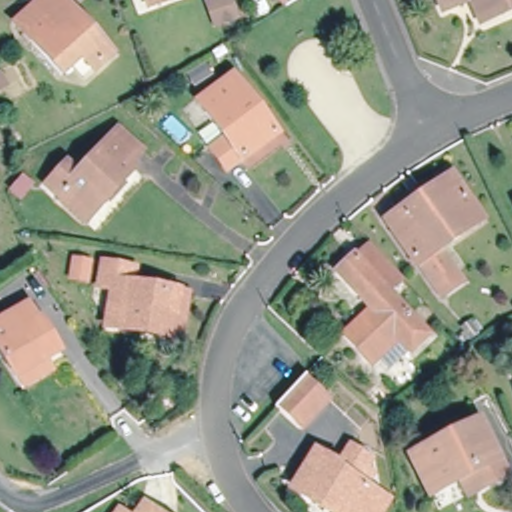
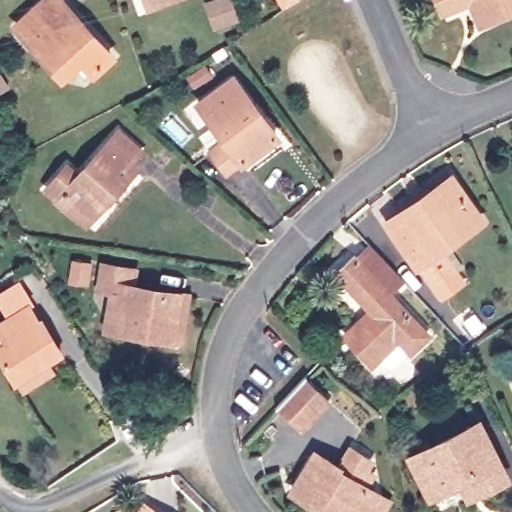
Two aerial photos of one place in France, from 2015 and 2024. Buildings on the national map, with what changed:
unchanged [(89,67),(76,53),(57,70),(12,21),(36,0),(60,0),(106,52),(89,67)]
unchanged [(149,0),(179,0),(152,9),(149,0)]
unchanged [(206,3),(214,0),(233,0),(240,19),(215,28),(206,3)]
unchanged [(282,0),(299,0),(286,8),(282,0)]
unchanged [(470,5),(441,18),(433,0),(512,0),(512,17),(480,29),(477,22),(470,5)]
unchanged [(242,158),(240,156),(226,166),(210,144),(224,134),(198,98),(233,72),(277,132),(242,158)]
unchanged [(56,182),(72,165),(84,175),(124,131),(146,151),(136,161),(142,166),(95,218),(91,223),(52,187),(56,182)]
unchanged [(441,245),(455,265),(435,279),(420,259),(418,261),(388,218),(453,173),(483,215),(441,245)]
unchanged [(402,279),(389,292),(430,334),(411,352),(399,339),(374,363),(346,334),(371,310),(337,275),(356,257),(358,259),(371,246),(402,279)]
unchanged [(175,330),(167,329),(101,318),(108,280),(94,278),(98,255),(132,261),(129,276),(176,284),(184,285),(175,330)]
unchanged [(12,378),(0,358),(0,323),(25,307),(35,323),(39,320),(57,351),(53,353),(42,360),(49,372),(19,389),(12,378)]
unchanged [(328,401),(302,427),(279,404),(304,377),(328,401)]
unchanged [(459,482),(430,496),(411,456),(479,423),(506,479),(477,493),(467,498),(459,482)]
unchanged [(359,512),(321,512),(286,490),(310,452),(333,467),(345,447),(366,460),(361,469),(369,473),(361,487),(370,493),(359,512)]
unchanged [(152,512),(135,512),(140,504),(152,512)]
unchanged [(116,508),(121,512),(114,512),(116,508)]

